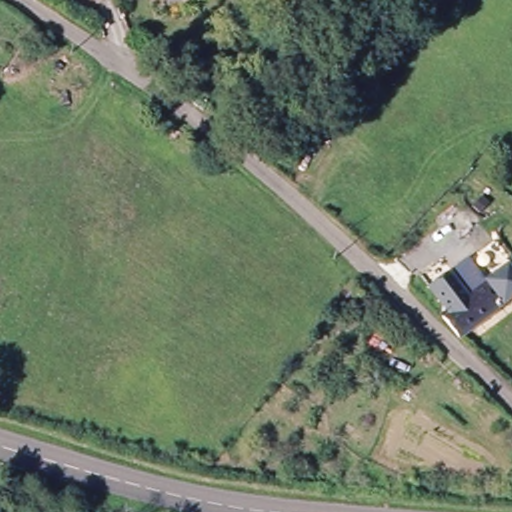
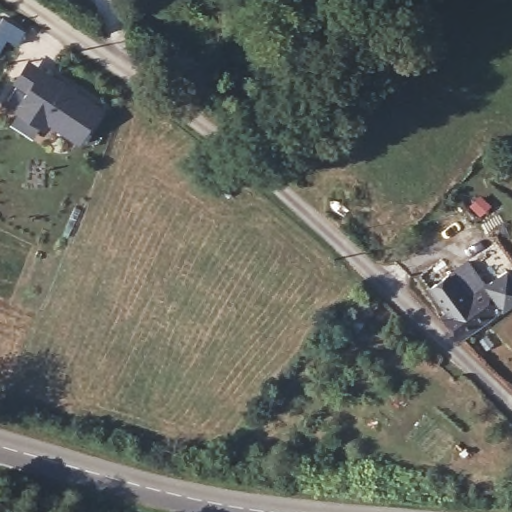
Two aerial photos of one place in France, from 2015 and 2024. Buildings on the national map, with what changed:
new [(100,107),(79,144),(48,124),(45,129),(14,110),(25,92),(14,85),(29,61),(100,107)]
unchanged [(436,326),(444,321),(428,296),(468,272),(483,296),(506,282),(512,293),(512,313),(499,320),(452,350),(436,326)]

